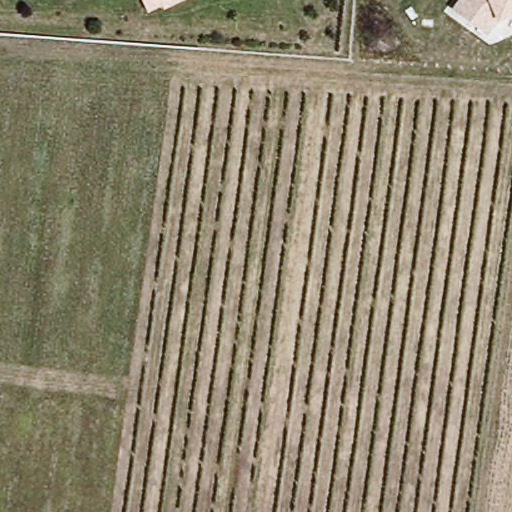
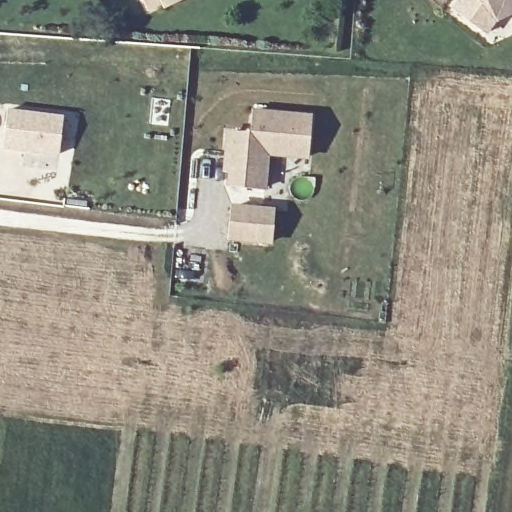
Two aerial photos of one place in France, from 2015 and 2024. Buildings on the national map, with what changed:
unchanged [(137,0),(191,0),(145,21),(137,0)]
unchanged [(497,22),(489,35),(449,8),(455,0),(512,0),(512,16),(497,22)]
new [(10,110),(66,119),(61,155),(5,149),(10,110)]
new [(227,186),(228,171),(222,171),(225,131),(252,132),(254,110),(311,115),(308,159),(267,156),(265,189),(227,186)]
new [(231,205),(273,209),(271,245),(227,240),(231,205)]

